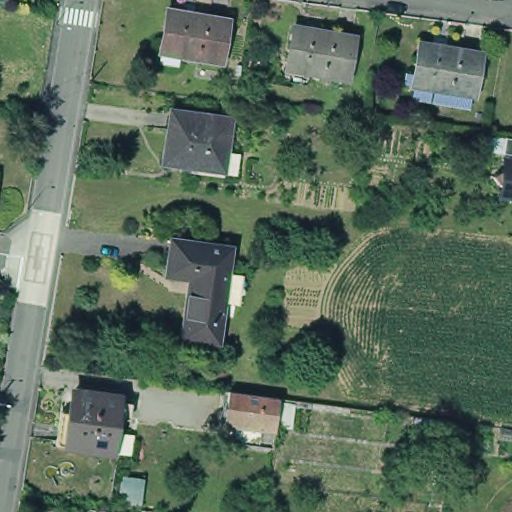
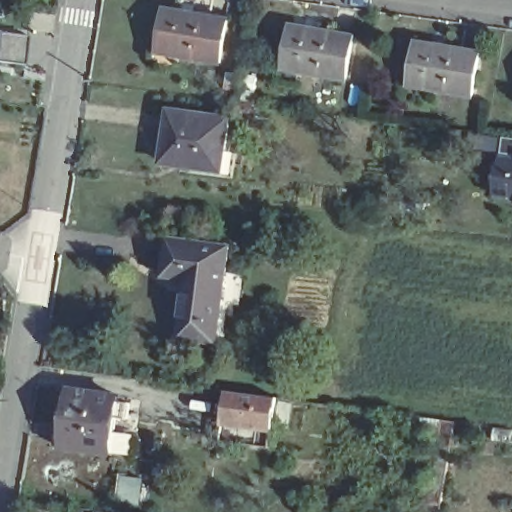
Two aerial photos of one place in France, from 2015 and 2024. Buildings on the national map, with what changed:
unchanged [(159,51),(165,15),(227,26),(220,69),(175,62),(158,59),(159,51)]
unchanged [(281,62),(287,27),(349,37),(341,79),(299,73),(280,70),(281,62)]
new [(20,63),(0,61),(0,31),(25,34),(20,63)]
unchanged [(412,73),(419,37),(480,49),(474,92),(430,84),(411,81),(412,73)]
unchanged [(225,167),(194,164),(193,168),(165,164),(172,112),(231,120),(225,167)]
unchanged [(507,155),(509,137),(512,138),(512,156),(507,155)]
unchanged [(500,197),(502,185),(497,177),(504,172),(507,160),(512,161),(512,199),(500,197)]
unchanged [(184,346),(191,299),(193,299),(194,287),(169,283),(174,249),(234,258),(220,352),(184,346)]
unchanged [(120,393),(119,398),(131,400),(129,414),(117,412),(112,449),(55,441),(57,417),(59,407),(70,408),(73,387),(120,393)]
unchanged [(227,443),(229,424),(232,404),(234,392),(251,394),(283,398),(282,410),(279,431),(277,450),(227,443)]

